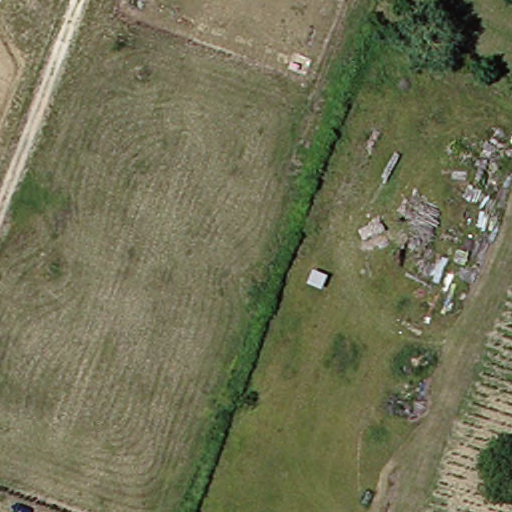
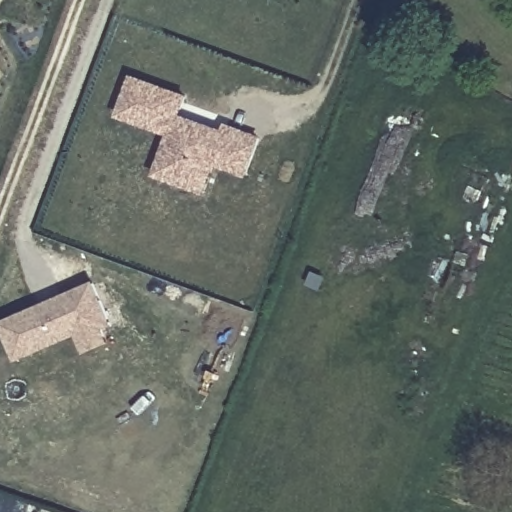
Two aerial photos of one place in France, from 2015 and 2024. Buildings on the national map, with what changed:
new [(167,135),(115,116),(129,79),(182,97),(175,117),(191,123),(221,134),(223,127),(255,139),(242,176),(211,164),(201,192),(152,176),(155,167),(167,135)]
new [(83,353),(77,339),(75,335),(15,361),(0,327),(0,325),(90,286),(108,326),(98,330),(104,344),(83,353)]

